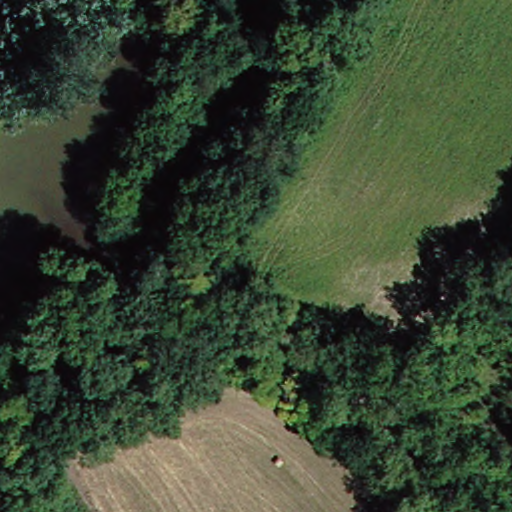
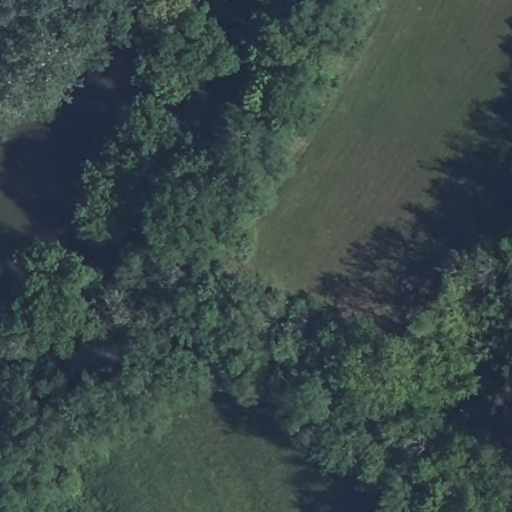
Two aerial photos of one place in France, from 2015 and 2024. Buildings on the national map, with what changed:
[]

